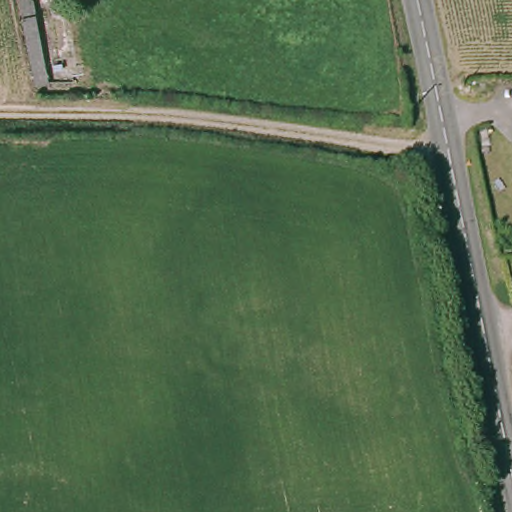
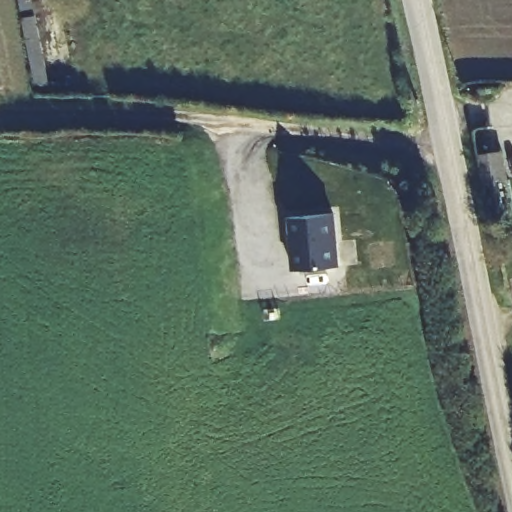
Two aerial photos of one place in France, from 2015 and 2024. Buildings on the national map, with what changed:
unchanged [(37,91),(23,94),(7,0),(21,0),(37,91)]
new [(292,268),(287,217),(335,213),(340,265),(292,268)]

